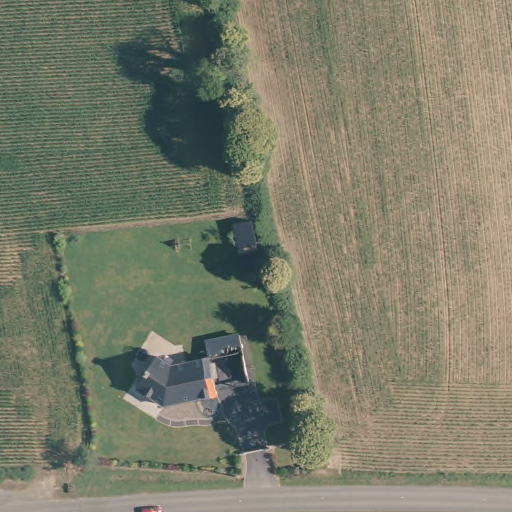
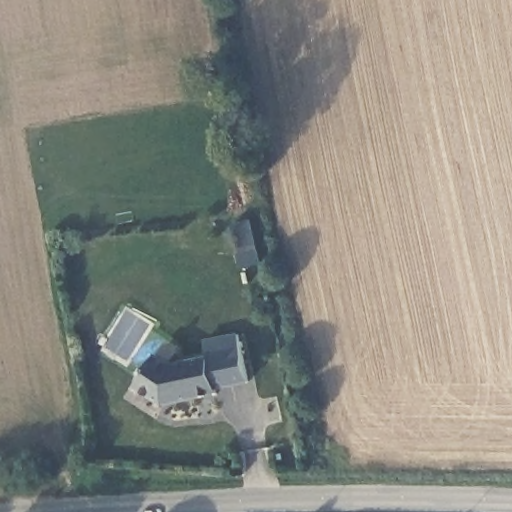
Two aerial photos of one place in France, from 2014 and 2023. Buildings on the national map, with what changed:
unchanged [(244,352),(250,384),(217,390),(218,395),(165,405),(138,387),(159,356),(173,366),(244,352)]

